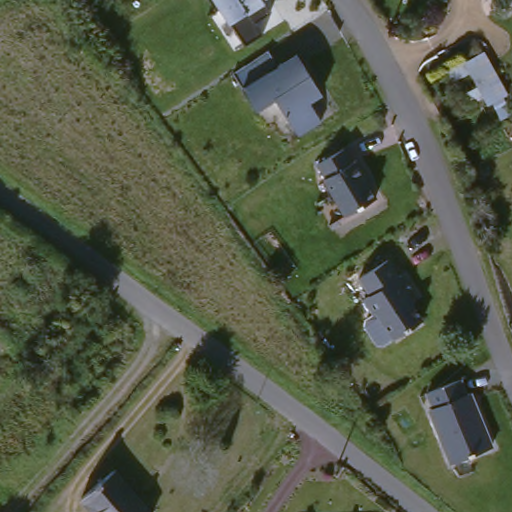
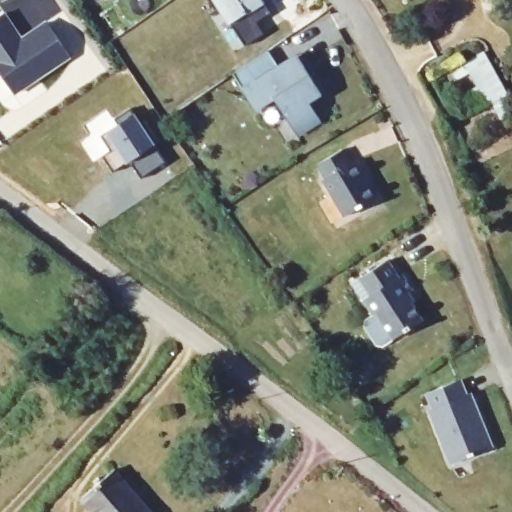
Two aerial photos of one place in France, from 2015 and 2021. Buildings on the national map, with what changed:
unchanged [(268,0),(264,3),(270,12),(256,22),(262,33),(244,45),(215,0),(268,0)]
new [(17,29),(11,33),(16,41),(48,20),(72,55),(15,92),(0,70),(0,14),(5,11),(17,29)]
unchanged [(426,69),(467,49),(472,57),(482,54),(490,72),(476,80),(471,76),(455,85),(451,80),(434,87),(426,69)]
unchanged [(267,50),(268,51),(278,66),(282,73),(290,68),(302,60),(308,69),(322,91),(310,99),(323,118),(299,134),(275,97),(256,110),(232,74),(245,66),(267,50)]
new [(117,125),(114,120),(130,109),(141,124),(145,121),(159,142),(154,145),(166,163),(142,179),(133,166),(125,165),(113,173),(102,157),(110,151),(100,137),(117,125)]
unchanged [(324,180),(326,178),(318,164),(344,149),(352,163),(356,160),(365,176),(363,177),(376,198),(346,216),(324,180)]
unchanged [(382,340),(370,322),(371,316),(379,310),(369,295),(376,290),(365,274),(393,255),(404,272),(408,270),(418,285),(414,288),(420,296),(417,298),(428,315),(398,334),(388,341),(382,340)]
unchanged [(460,379),(465,394),(468,393),(490,447),(451,462),(427,406),(433,404),(426,391),(460,379)]
unchanged [(81,498),(115,469),(152,512),(93,512),(81,498)]

